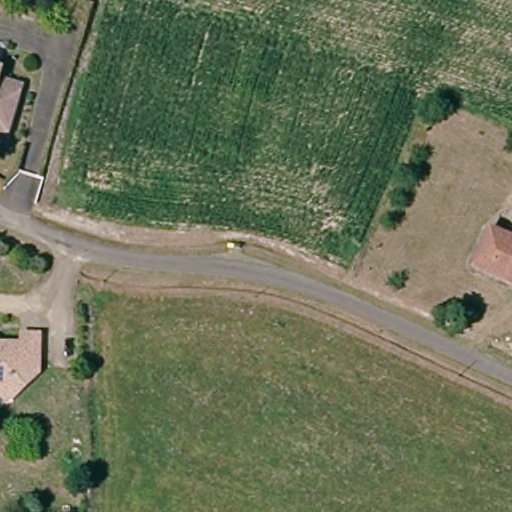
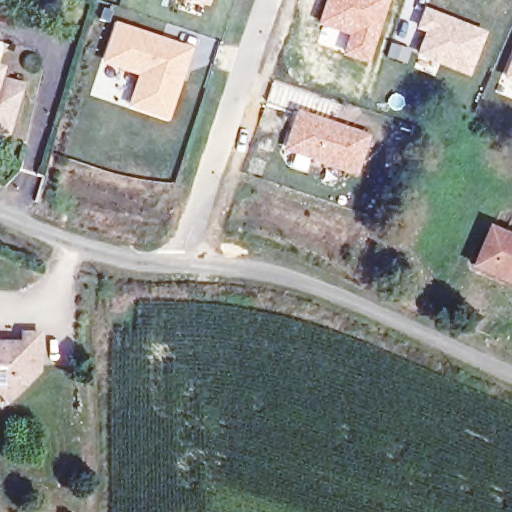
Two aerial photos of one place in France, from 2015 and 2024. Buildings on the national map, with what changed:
new [(202,17),(178,9),(181,0),(207,0),(202,17)]
new [(325,0),(388,0),(368,64),(343,56),(347,35),(317,25),(325,0)]
new [(482,32),(468,71),(440,62),(435,75),(415,67),(430,30),(419,25),(425,10),(482,32)]
new [(114,20),(195,47),(169,122),(127,107),(137,75),(100,62),(114,20)]
new [(512,59),(512,80),(505,77),(512,59)]
unchanged [(21,84),(4,135),(0,134),(0,77),(21,84)]
new [(296,110),(301,110),(327,115),(333,115),(331,120),(372,134),(358,176),(283,150),(296,110)]
unchanged [(494,225),(512,234),(512,279),(477,262),(494,225)]
unchanged [(12,343),(13,331),(35,332),(35,367),(4,397),(0,393),(0,343),(12,343)]

